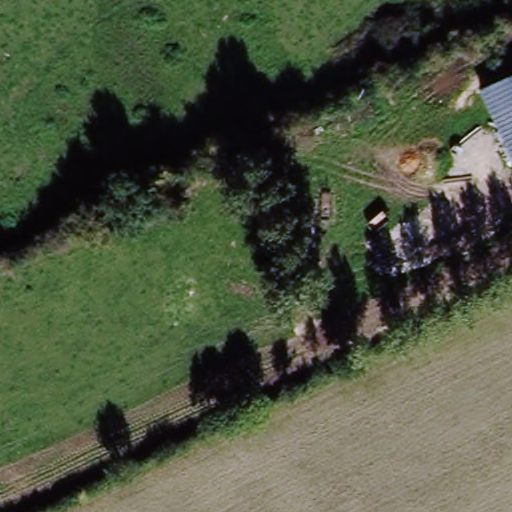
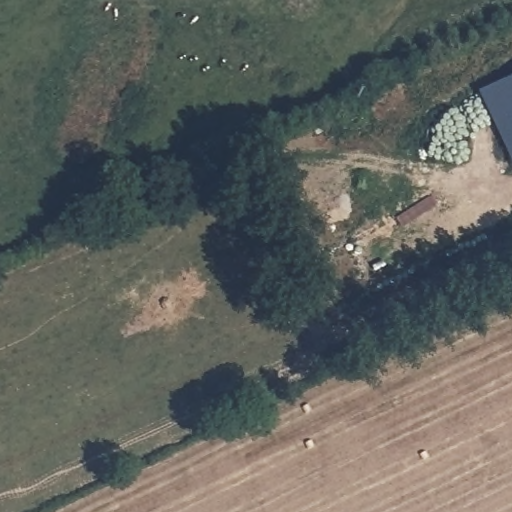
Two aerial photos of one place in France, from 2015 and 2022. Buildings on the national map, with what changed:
unchanged [(512,79),(512,167),(479,95),(512,79)]

